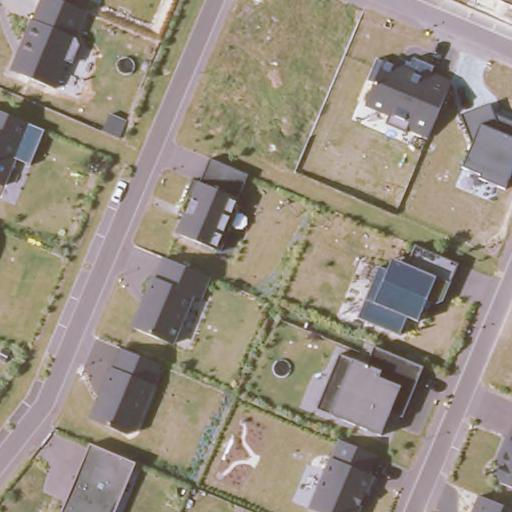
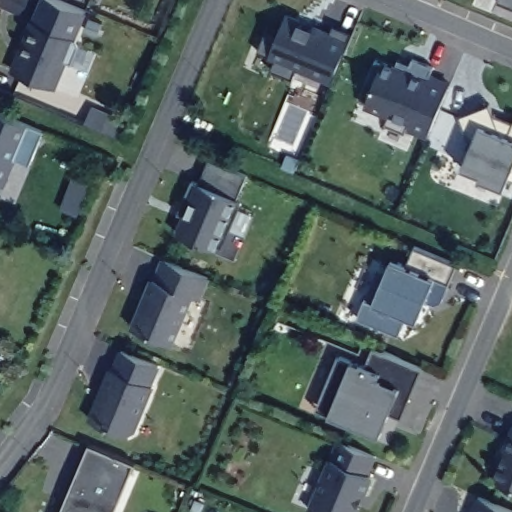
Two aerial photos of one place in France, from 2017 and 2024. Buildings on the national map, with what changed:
unchanged [(87,13),(55,90),(11,71),(33,19),(37,21),(44,0),(57,0),(87,13)]
unchanged [(512,6),(498,0),(512,0),(512,6)]
new [(349,33),(328,83),(294,69),(288,79),(267,70),(273,59),(254,50),(265,29),(275,33),(283,16),(327,35),(331,25),(349,33)]
unchanged [(406,129),(405,134),(385,125),(389,117),(365,108),(384,60),(397,65),(399,59),(412,64),(415,58),(437,66),(433,75),(451,82),(427,138),(406,129)]
unchanged [(482,175),(463,167),(472,144),(462,115),(490,104),(493,114),(512,121),(512,170),(505,188),(480,179),(482,175)]
unchanged [(43,127),(27,161),(15,155),(3,185),(0,184),(0,109),(43,127)]
unchanged [(184,215),(177,213),(192,179),(200,183),(210,157),(247,173),(236,199),(218,250),(177,233),(184,215)]
unchanged [(381,263),(398,270),(402,258),(412,261),(420,241),(465,260),(447,300),(437,303),(428,300),(419,321),(409,317),(403,336),(362,316),(381,263)]
unchanged [(153,275),(162,256),(210,278),(203,296),(195,295),(172,343),(133,325),(153,275)]
unchanged [(330,415),(317,410),(338,357),(352,361),(367,367),(373,350),(422,368),(402,418),(390,412),(381,435),(330,415)]
unchanged [(110,367),(152,384),(133,435),(92,417),(110,367)]
unchanged [(500,466),(498,464),(512,432),(512,491),(496,485),(500,466)]
unchanged [(370,475),(373,475),(358,512),(318,512),(310,508),(330,457),(339,439),(378,456),(370,475)]
unchanged [(135,465),(114,512),(61,512),(90,445),(135,465)]
unchanged [(512,511),(512,512),(474,512),(482,497),(512,511)]

